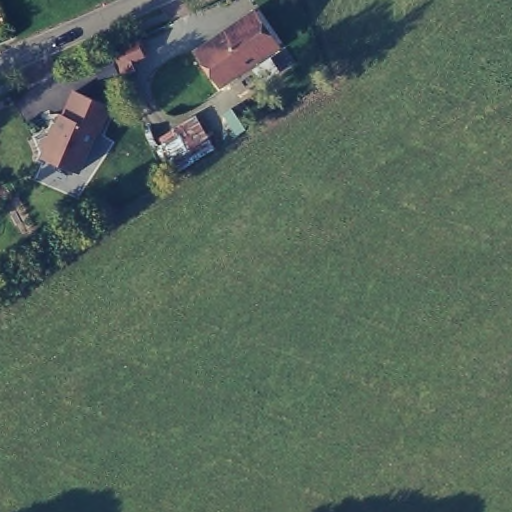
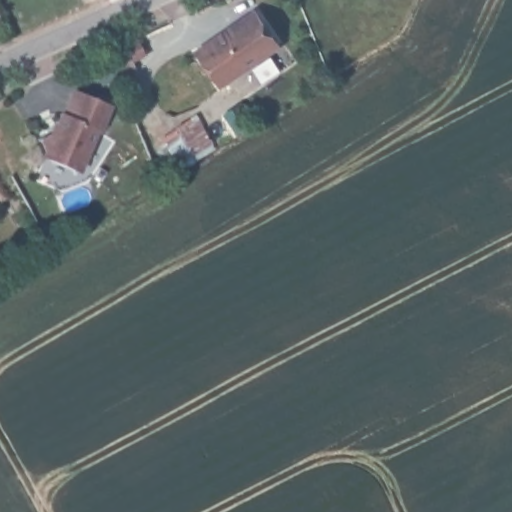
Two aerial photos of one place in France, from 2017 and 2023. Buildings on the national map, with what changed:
unchanged [(279,49),(273,52),(249,70),(221,88),(199,55),(256,15),(279,49)]
unchanged [(41,157),(45,149),(40,138),(52,130),(70,90),(112,105),(81,174),(41,157)]

